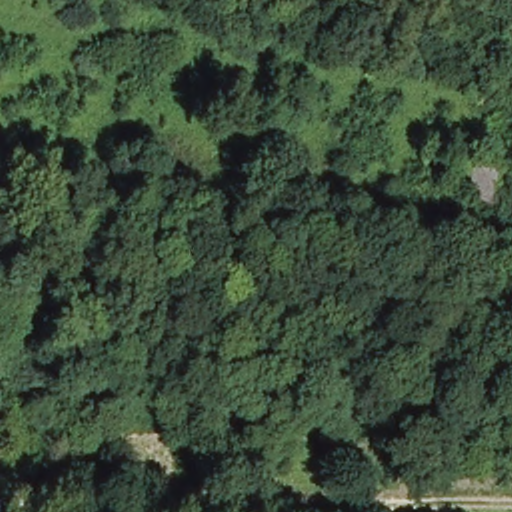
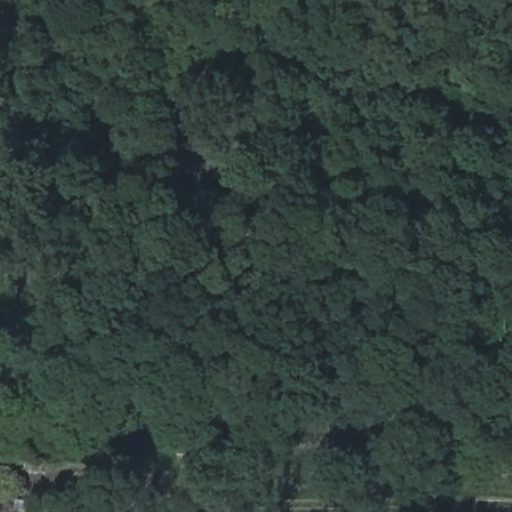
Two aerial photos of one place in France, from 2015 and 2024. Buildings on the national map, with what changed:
unchanged [(489,203),(459,191),(467,153),(495,162),(489,203)]

